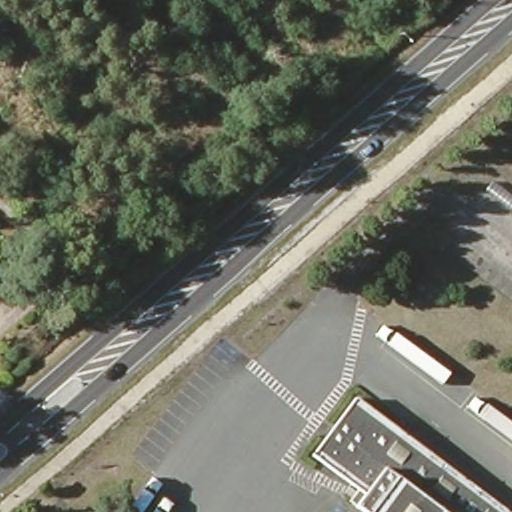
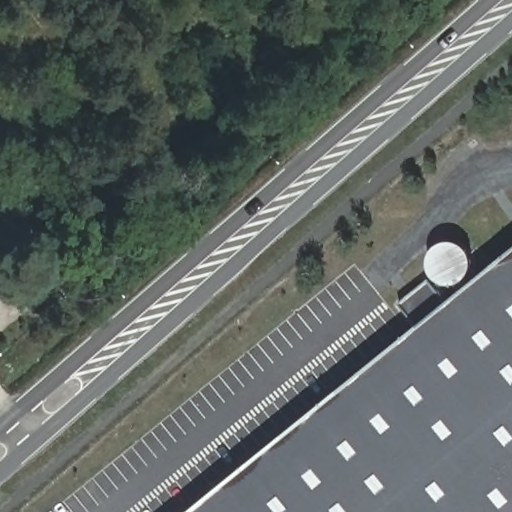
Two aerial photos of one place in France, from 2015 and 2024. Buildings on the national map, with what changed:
new [(422,332),(400,306),(431,282),(436,288),(441,284),(435,277),(433,274),(432,266),(433,259),(435,255),(439,250),(442,248),(450,245),(453,245),(461,246),(465,248),(470,253),(472,256),(475,263),(475,270),(474,274),(470,281),(467,283),(461,287),(452,288),(449,294),(444,298),(453,308),(512,259),(512,512),(201,512),(422,332)]
demolished [(354,503),(361,490),(310,450),(351,394),(512,509),(512,512),(363,512),(354,503)]

